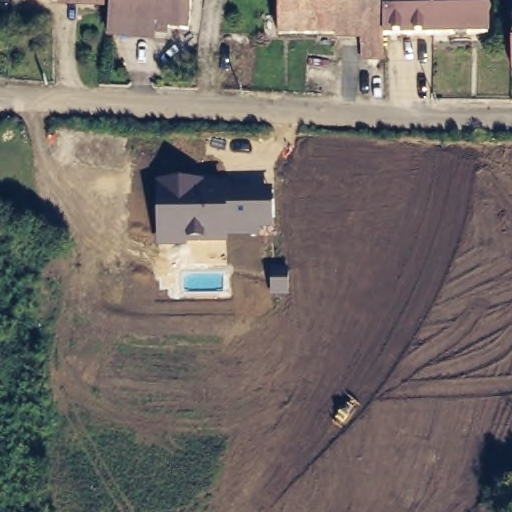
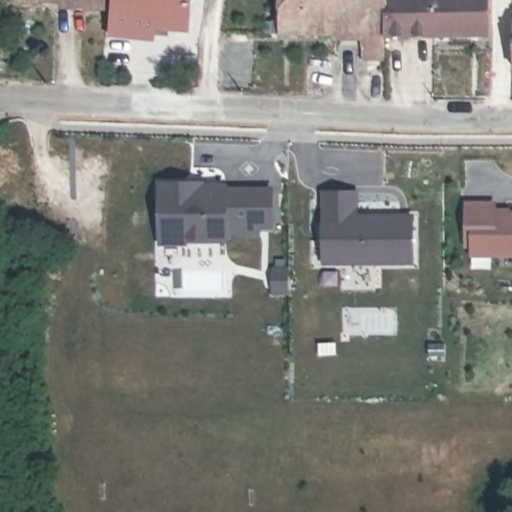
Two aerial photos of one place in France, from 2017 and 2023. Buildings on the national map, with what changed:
unchanged [(185,26),(107,19),(109,0),(187,0),(185,26)]
unchanged [(387,35),(387,61),(367,60),(365,48),(365,36),(340,37),(280,38),(280,0),(386,0),(387,35)]
unchanged [(386,0),(490,0),(490,34),(435,34),(387,35),(386,0)]
unchanged [(512,19),(512,32),(511,19),(512,19)]
unchanged [(260,227),(260,235),(228,235),(228,241),(186,241),(186,246),(158,246),(158,182),(225,182),(225,187),(272,188),(273,228),(260,227)]
new [(322,265),(322,191),(357,191),(358,213),(413,214),(414,265),(322,265)]
new [(470,258),(469,248),(464,248),(464,201),(495,200),(497,208),(510,208),(510,210),(512,210),(512,258),(470,258)]

